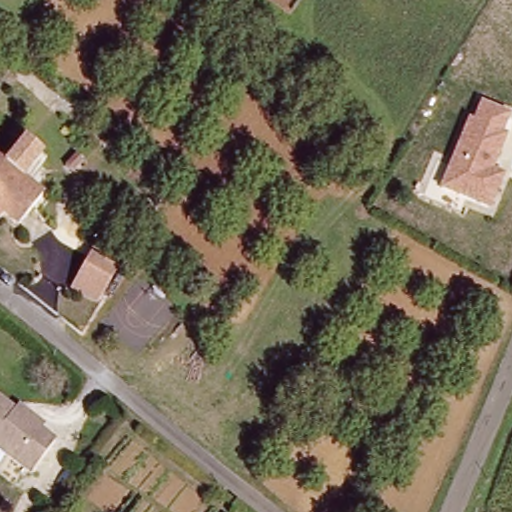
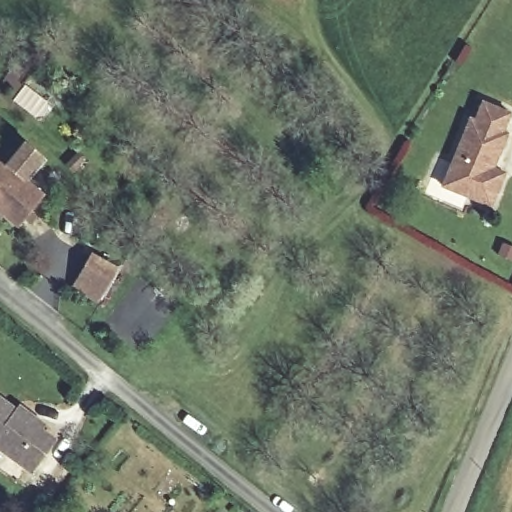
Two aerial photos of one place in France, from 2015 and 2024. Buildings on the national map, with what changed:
unchanged [(508,112),(501,130),(507,132),(496,158),(486,157),(483,163),(505,172),(490,206),(440,184),(468,118),(473,120),(482,101),(508,112)]
unchanged [(23,141),(44,157),(30,177),(10,161),(23,141)]
unchanged [(0,204),(0,155),(1,154),(45,189),(50,194),(33,211),(22,222),(0,204)]
unchanged [(91,254),(115,269),(95,302),(71,287),(91,254)]
unchanged [(0,394),(26,412),(33,412),(45,421),(48,422),(45,427),(60,437),(36,470),(19,457),(0,443),(0,394)]

